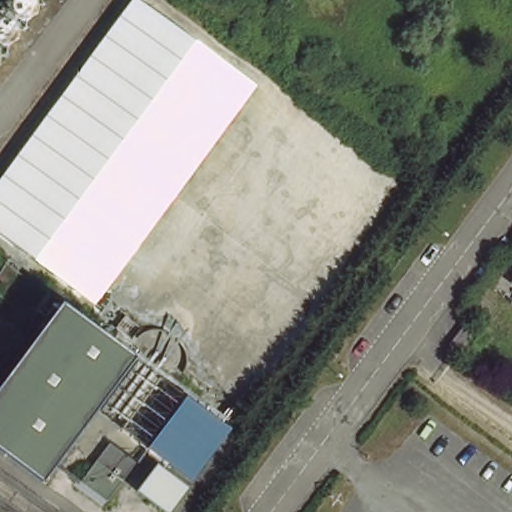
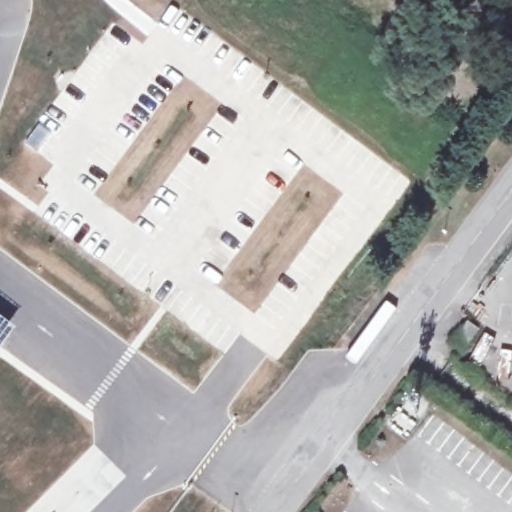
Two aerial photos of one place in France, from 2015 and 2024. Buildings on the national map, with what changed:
demolished [(97,304),(0,233),(0,183),(135,0),(139,0),(256,87),(97,304)]
demolished [(511,285),(512,284),(512,286),(511,285)]
demolished [(136,355),(42,481),(0,449),(0,382),(61,300),(136,355)]
unchanged [(461,346),(452,339),(468,317),(478,324),(463,344),(462,346),(461,346)]
demolished [(193,481),(151,449),(187,398),(230,430),(193,481)]
demolished [(87,480),(112,441),(138,461),(111,498),(87,480)]
demolished [(172,512),(167,512),(140,493),(160,467),(190,489),(172,512)]

